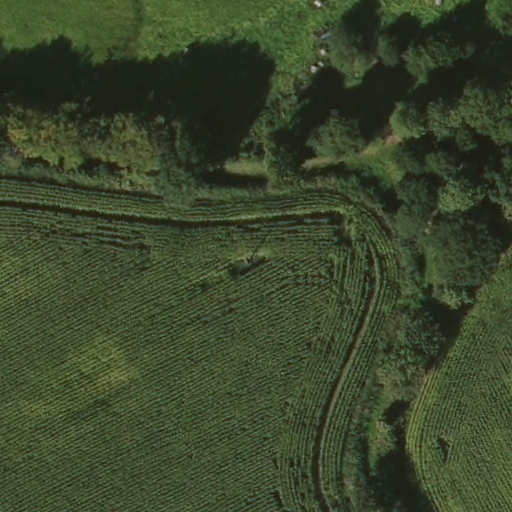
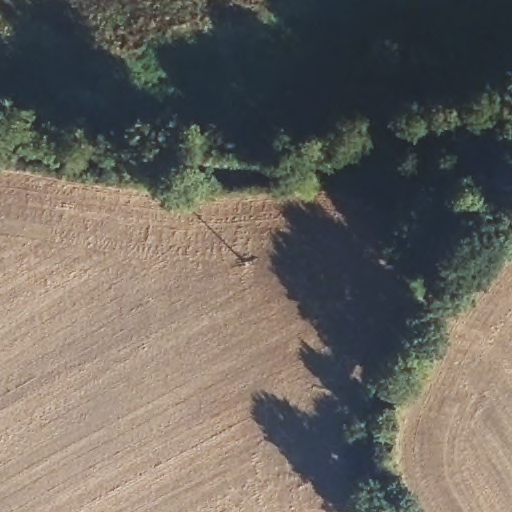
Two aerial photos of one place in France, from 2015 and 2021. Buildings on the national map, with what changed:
[]

